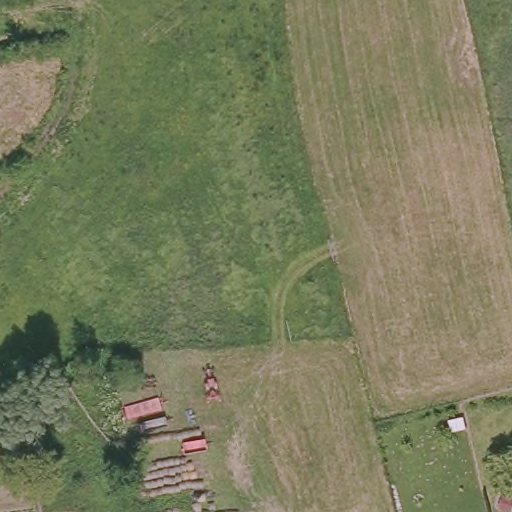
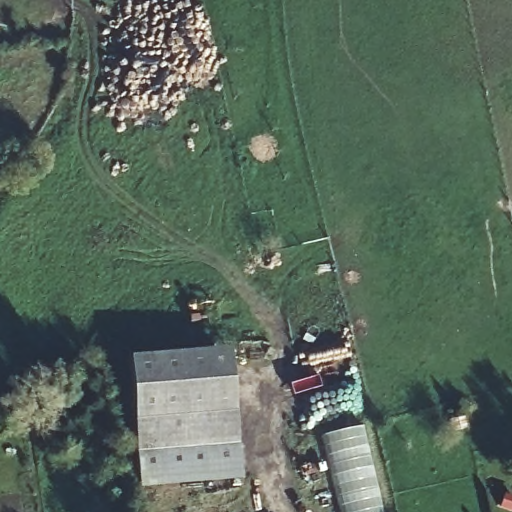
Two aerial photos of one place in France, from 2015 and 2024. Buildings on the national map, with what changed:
new [(241,477),(138,485),(128,356),(230,347),(241,477)]
new [(322,437),(362,428),(383,512),(341,512),(322,437)]

